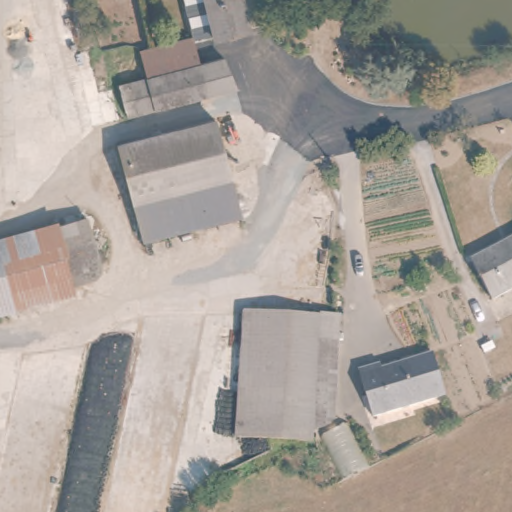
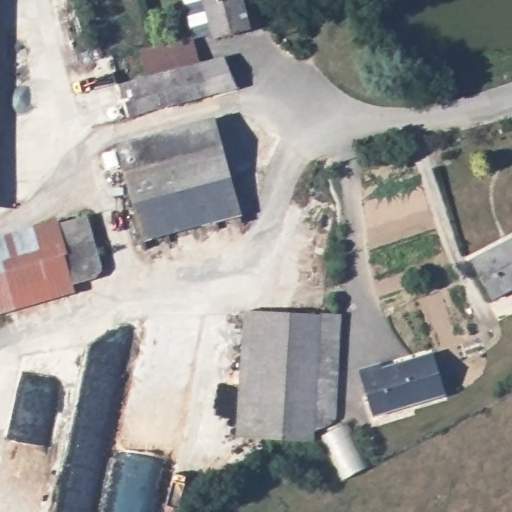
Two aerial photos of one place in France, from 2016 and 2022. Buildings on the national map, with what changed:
unchanged [(218,37),(201,41),(189,0),(207,0),(218,37)]
unchanged [(257,39),(239,43),(237,36),(219,40),(218,37),(207,0),(246,0),(257,39)]
unchanged [(152,78),(145,51),(197,38),(205,65),(152,78)]
unchanged [(152,78),(205,65),(229,58),(242,90),(132,117),(124,85),(152,78)]
unchanged [(215,119),(232,180),(182,192),(166,132),(215,119)]
unchanged [(182,192),(133,206),(117,145),(166,132),(182,192)]
unchanged [(7,180),(7,211),(0,212),(0,180),(7,180)]
unchanged [(182,192),(232,180),(244,225),(146,251),(133,206),(182,192)]
unchanged [(72,256),(64,225),(92,216),(107,270),(100,280),(79,285),(72,256)]
unchanged [(81,294),(0,317),(0,238),(63,221),(64,225),(72,256),(79,285),(81,294)]
unchanged [(472,262),(502,245),(512,240),(512,290),(492,300),(472,262)]
unchanged [(242,439),(249,312),(295,315),(288,441),(242,439)]
unchanged [(295,315),(326,316),(318,442),(288,441),(295,315)]
unchanged [(379,365),(381,372),(434,355),(447,395),(373,419),(359,372),(379,365)]

